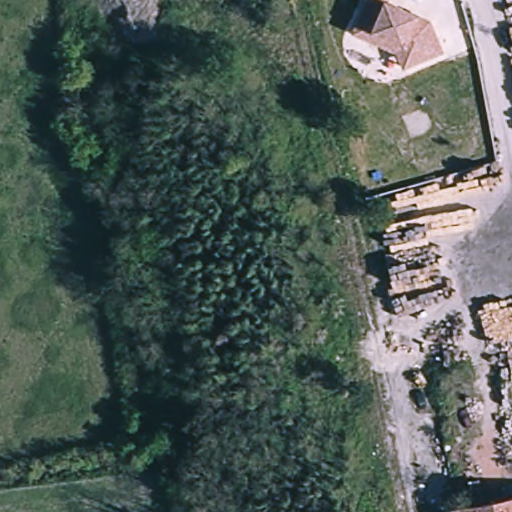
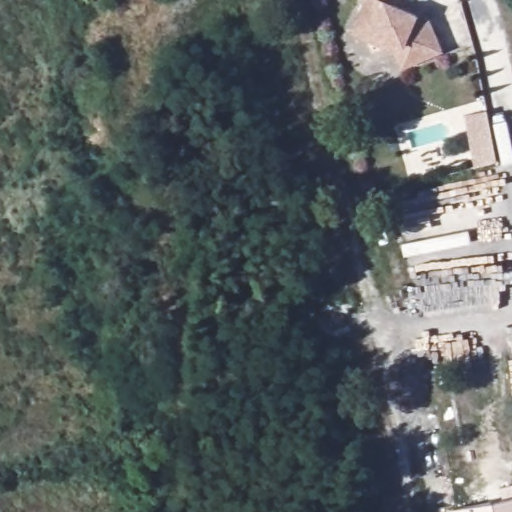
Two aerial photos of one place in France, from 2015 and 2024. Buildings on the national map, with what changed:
unchanged [(446,55),(401,71),(395,54),(350,34),(365,0),(391,0),(432,17),(446,55)]
new [(487,110),(501,162),(480,166),(466,114),(487,110)]
unchanged [(448,511),(512,497),(512,512),(448,512),(448,511)]

